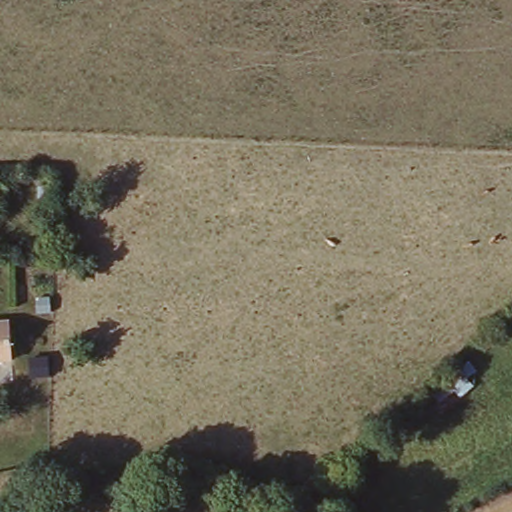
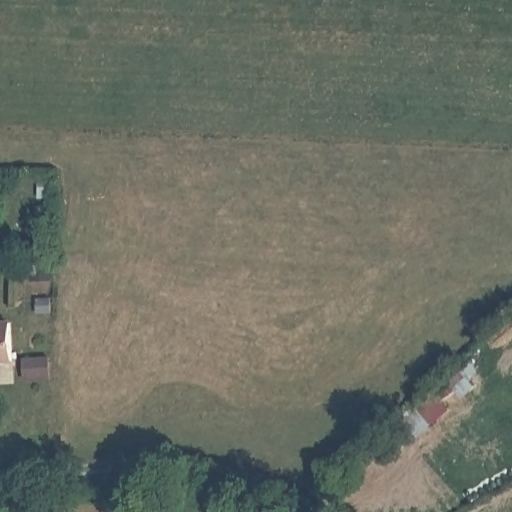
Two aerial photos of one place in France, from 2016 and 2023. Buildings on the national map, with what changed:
unchanged [(12,328),(12,366),(6,366),(5,372),(0,372),(0,328),(12,328)]

